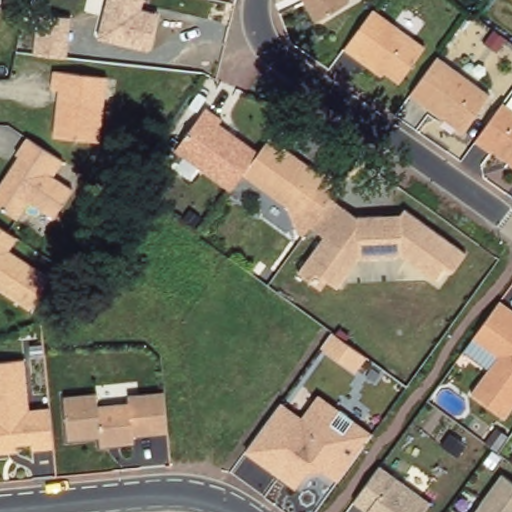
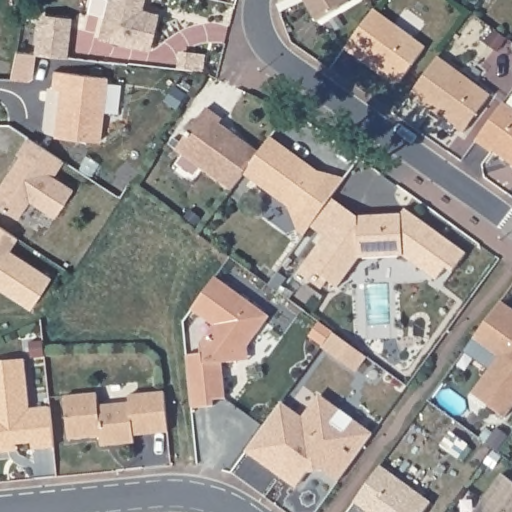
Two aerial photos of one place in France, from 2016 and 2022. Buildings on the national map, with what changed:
unchanged [(97,40),(105,0),(146,0),(143,9),(157,13),(148,53),(97,40)]
unchanged [(354,1),(315,23),(302,0),(353,0),(354,1)]
unchanged [(424,48),(399,81),(387,72),(381,78),(345,47),(373,9),(424,48)]
unchanged [(34,52),(39,12),(71,18),(67,58),(34,52)]
unchanged [(493,96),(462,134),(410,95),(438,55),(493,96)]
unchanged [(61,70),(108,75),(100,145),(53,136),(61,70)]
unchanged [(512,162),(495,150),(492,153),(474,141),(503,102),(512,108),(512,162)]
unchanged [(300,239),(286,206),(243,175),(232,191),(174,151),(205,108),(220,118),(218,123),(258,153),(271,136),(317,173),(345,178),(332,196),(309,226),(300,239)]
unchanged [(72,189),(53,217),(28,200),(16,218),(0,207),(0,184),(7,173),(19,155),(15,153),(27,137),(62,160),(52,175),(72,189)]
unchanged [(357,216),(413,206),(475,250),(457,274),(451,271),(442,282),(403,253),(365,255),(339,285),(327,277),(318,286),(298,273),(326,239),(309,226),(332,196),(357,216)]
unchanged [(6,234),(18,242),(9,255),(51,282),(31,313),(0,292),(0,231),(6,234)]
new [(239,360),(225,361),(229,397),(216,398),(217,404),(195,406),(190,354),(205,352),(204,342),(210,333),(217,324),(195,308),(219,276),(272,315),(250,346),(251,353),(251,358),(239,360)]
unchanged [(512,414),(508,418),(471,391),(495,358),(470,337),(500,300),(512,308),(512,414)]
new [(360,369),(355,366),(326,344),(336,331),(365,352),(369,355),(360,369)]
unchanged [(24,356),(30,408),(54,406),(59,448),(0,454),(0,361),(24,356)]
unchanged [(63,397),(97,393),(99,405),(127,401),(127,394),(164,390),(168,431),(135,433),(134,443),(99,446),(98,435),(67,439),(63,397)]
unchanged [(377,434),(341,484),(319,469),(301,492),(246,450),(282,402),(301,417),(319,392),(377,434)]
unchanged [(422,512),(366,512),(354,502),(380,467),(430,501),(422,512)]
unchanged [(512,512),(473,512),(501,474),(512,482),(512,512)]

